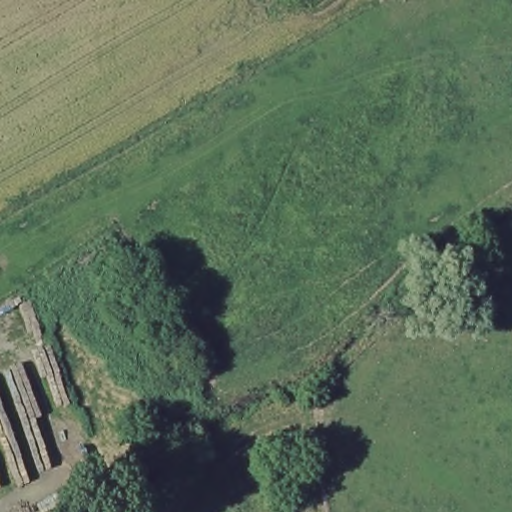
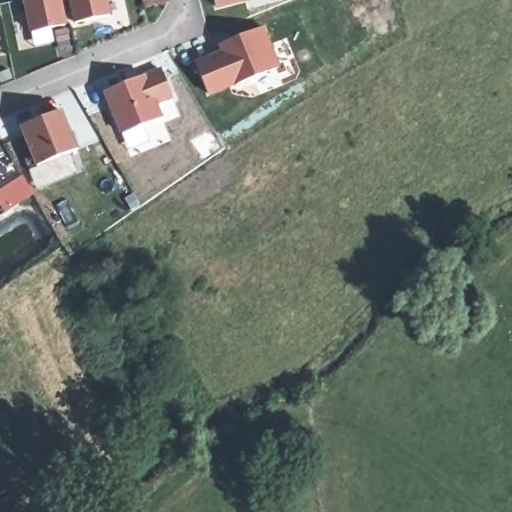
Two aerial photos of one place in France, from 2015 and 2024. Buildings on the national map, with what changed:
new [(31,32),(25,0),(60,0),(65,25),(31,32)]
new [(75,23),(71,0),(107,0),(110,15),(75,23)]
new [(144,8),(142,0),(168,0),(168,1),(144,8)]
new [(215,0),(244,0),(216,7),(215,0)]
new [(224,52),(221,45),(263,28),(279,67),(236,84),(236,83),(208,94),(196,64),(224,52)]
new [(128,83),(129,87),(136,85),(139,78),(161,69),(172,96),(156,104),(161,117),(121,133),(104,92),(128,83)]
new [(20,126),(60,110),(76,150),(37,166),(20,126)]
demolished [(0,333),(0,304),(12,297),(24,316),(0,333)]
demolished [(15,480),(0,440),(0,378),(6,376),(43,470),(15,480)]

